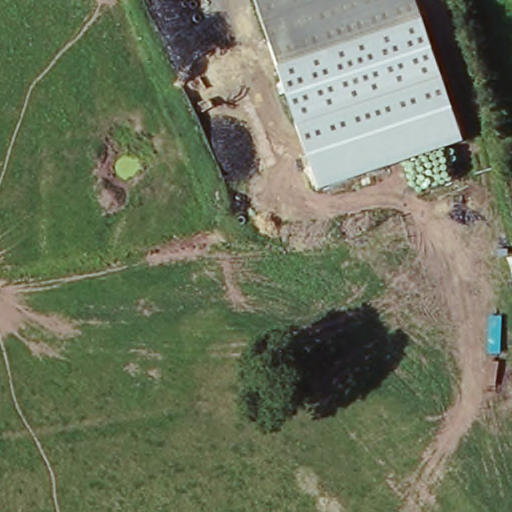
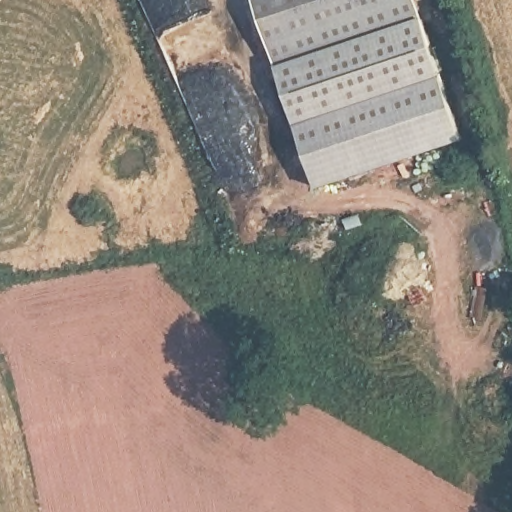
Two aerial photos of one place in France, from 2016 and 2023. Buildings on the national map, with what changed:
unchanged [(279,67),(257,0),(416,0),(422,19),(279,67)]
unchanged [(422,19),(441,76),(298,124),(279,67),(422,19)]
unchanged [(465,146),(321,194),(298,124),(441,76),(465,146)]

